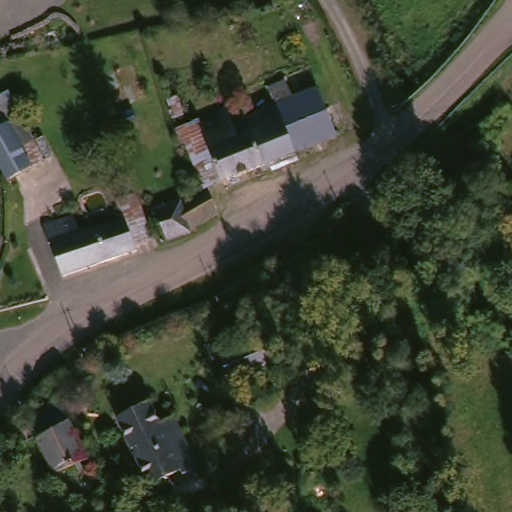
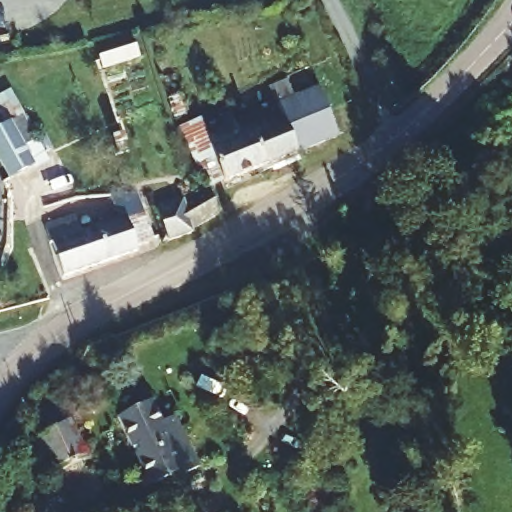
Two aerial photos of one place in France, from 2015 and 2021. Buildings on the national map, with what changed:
unchanged [(244,118),(289,99),(283,85),(297,79),(303,94),(327,84),(346,132),(308,146),(234,176),(210,116),(238,104),(244,118)]
unchanged [(0,153),(0,133),(10,127),(0,106),(0,99),(19,91),(54,153),(12,173),(0,153)]
unchanged [(185,114),(174,117),(168,100),(179,96),(185,114)]
unchanged [(234,176),(216,183),(190,124),(210,116),(234,176)]
unchanged [(165,199),(188,190),(190,196),(206,190),(217,186),(227,209),(202,227),(179,237),(165,199)]
unchanged [(68,272),(58,240),(55,241),(48,221),(78,211),(84,228),(130,213),(125,197),(144,191),(158,234),(139,240),(142,248),(68,272)]
unchanged [(274,329),(285,354),(240,373),(229,348),(274,329)]
unchanged [(50,383),(62,376),(74,401),(66,406),(108,500),(115,512),(74,512),(25,411),(50,383)]
unchanged [(158,400),(168,421),(183,415),(201,455),(153,476),(124,415),(158,400)]

